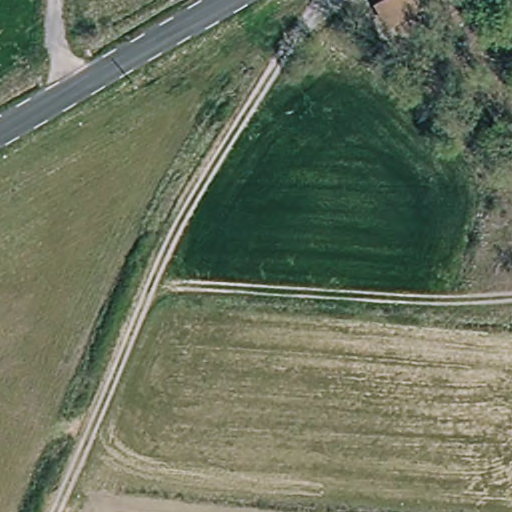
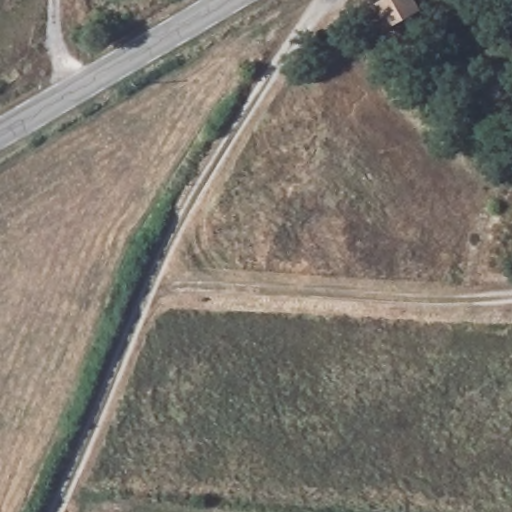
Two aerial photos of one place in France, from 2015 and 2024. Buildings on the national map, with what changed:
unchanged [(384,0),(414,0),(421,11),(391,30),(376,6),(384,0)]

